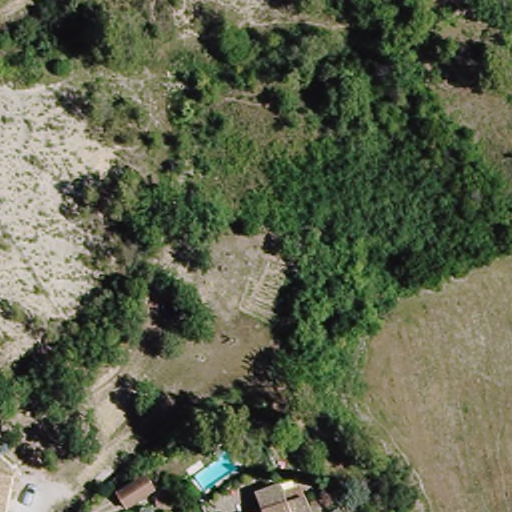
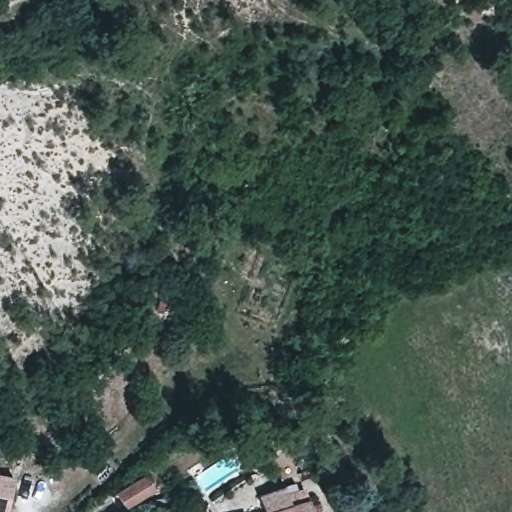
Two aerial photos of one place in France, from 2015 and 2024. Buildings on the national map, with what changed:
unchanged [(23,470),(21,507),(0,506),(0,468),(23,470)]
unchanged [(127,508),(117,496),(139,478),(146,473),(155,485),(149,490),(149,491),(127,508)]
unchanged [(257,497),(285,488),(287,497),(295,497),(297,497),(294,495),(305,492),(309,503),(312,512),(261,512),(257,497)]

